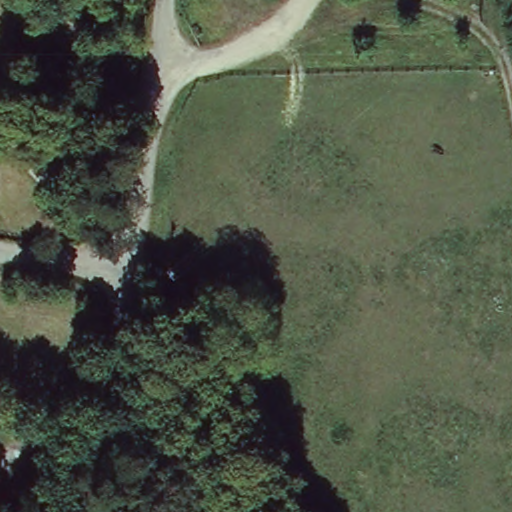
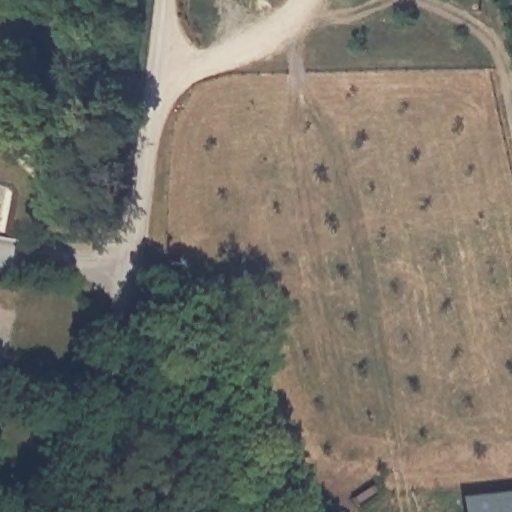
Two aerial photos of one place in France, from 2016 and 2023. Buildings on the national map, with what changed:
new [(460,512),(458,501),(512,496),(512,512),(460,512)]

